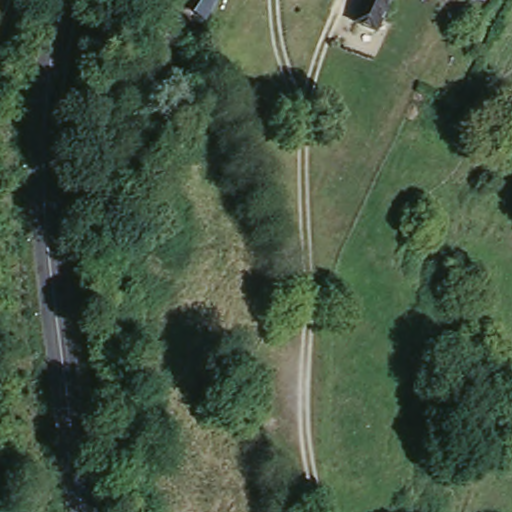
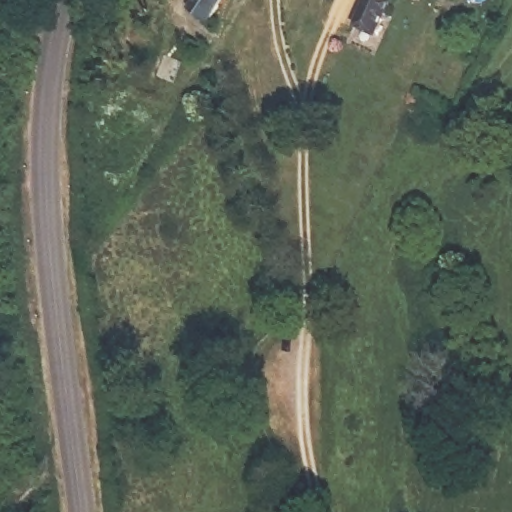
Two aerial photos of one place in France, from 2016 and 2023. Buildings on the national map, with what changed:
unchanged [(211,23),(187,9),(193,0),(225,0),(211,23)]
unchanged [(363,23),(371,0),(406,0),(394,33),(363,23)]

